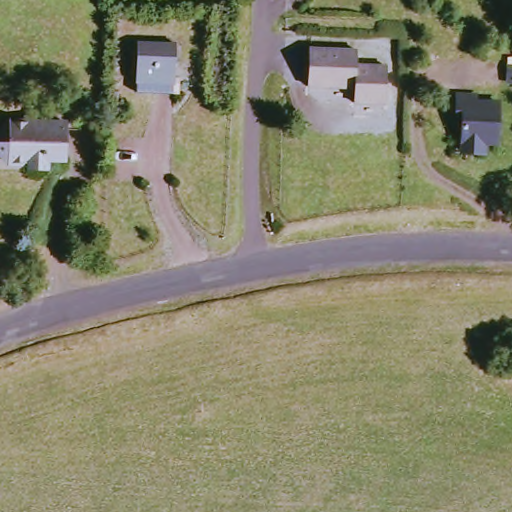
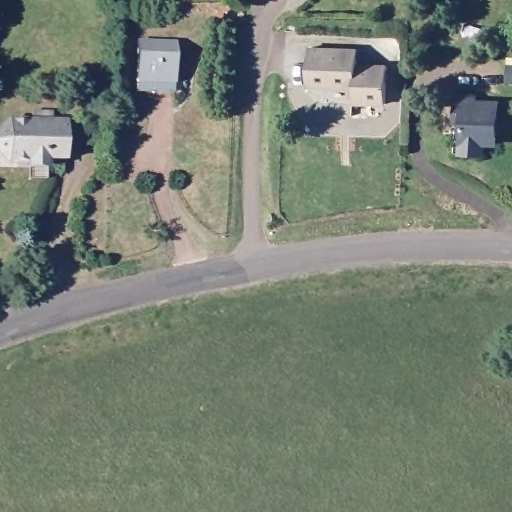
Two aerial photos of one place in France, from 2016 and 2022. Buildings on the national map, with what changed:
unchanged [(133,82),(133,72),(137,34),(176,39),(173,77),(172,87),(133,82)]
unchanged [(351,63),(381,66),(379,104),(348,101),(348,88),(299,81),(302,45),(351,50),(351,63)]
unchanged [(455,95),(474,95),(474,101),(496,101),(494,142),(482,142),(482,155),(454,153),(454,137),(454,121),(455,95)]
unchanged [(44,160),(44,166),(18,164),(0,145),(0,135),(9,127),(9,121),(32,122),(31,113),(53,113),(54,123),(65,123),(64,160),(44,160)]

